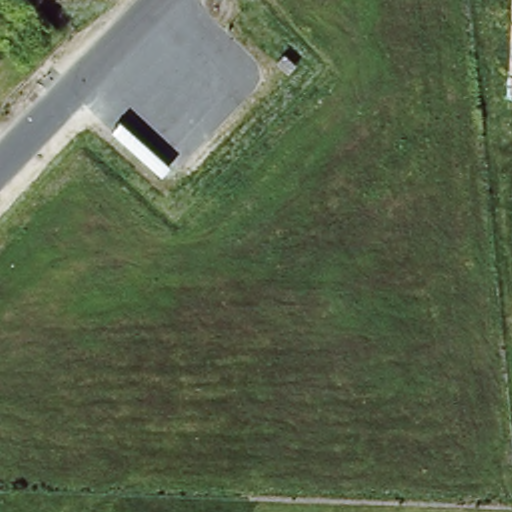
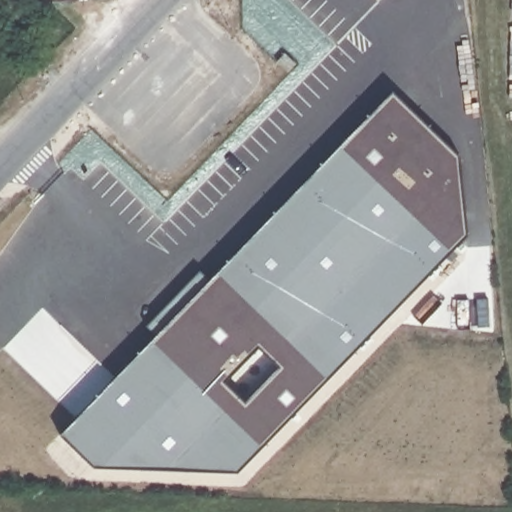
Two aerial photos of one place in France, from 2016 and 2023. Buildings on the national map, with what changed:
new [(402,87),(469,153),(477,229),(240,467),(100,462),(64,426),(402,87)]

